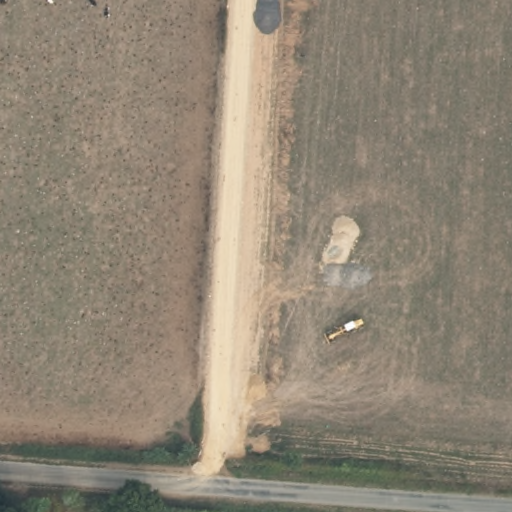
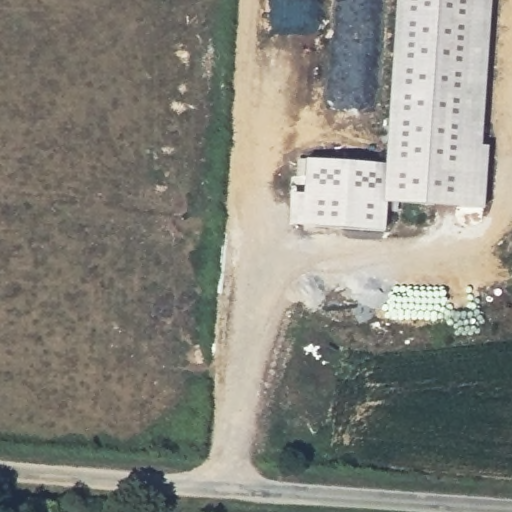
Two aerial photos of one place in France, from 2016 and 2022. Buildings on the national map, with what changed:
new [(306,158),(385,163),(396,0),(492,0),(483,145),(489,145),(485,210),(387,203),(385,232),(288,225),(290,192),(304,193),(306,158)]

